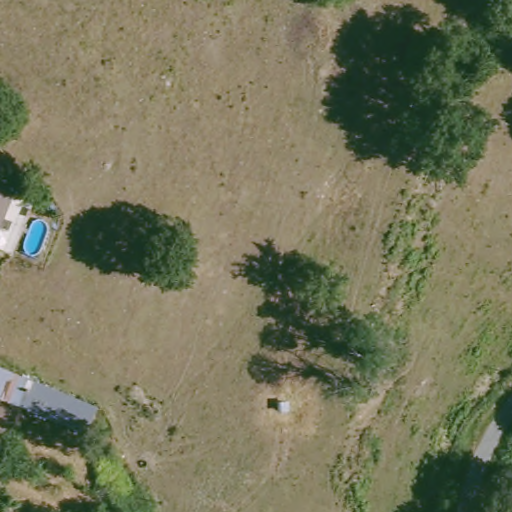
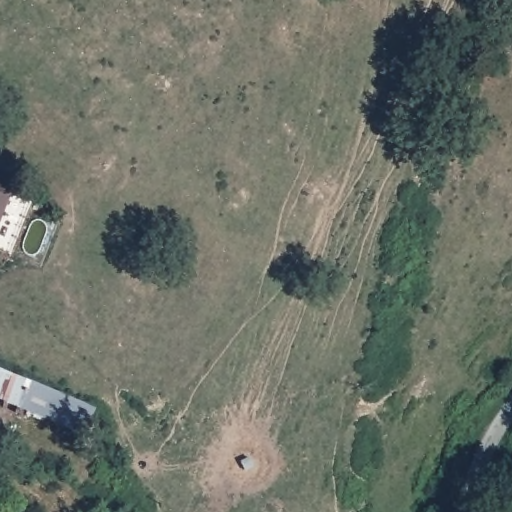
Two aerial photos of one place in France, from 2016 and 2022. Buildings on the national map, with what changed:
unchanged [(0,205),(0,190),(5,192),(0,205)]
unchanged [(59,418),(31,406),(27,412),(0,400),(0,368),(67,397),(59,418)]

